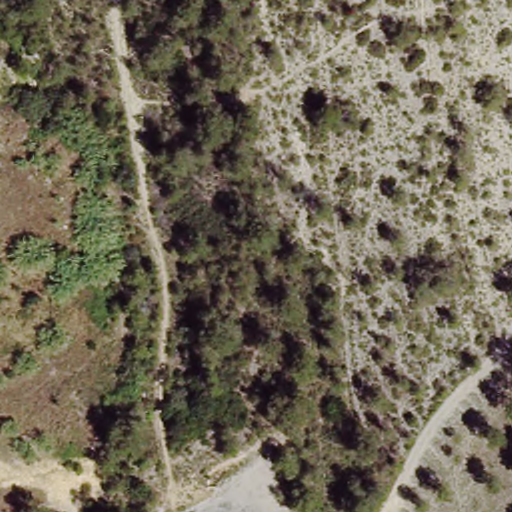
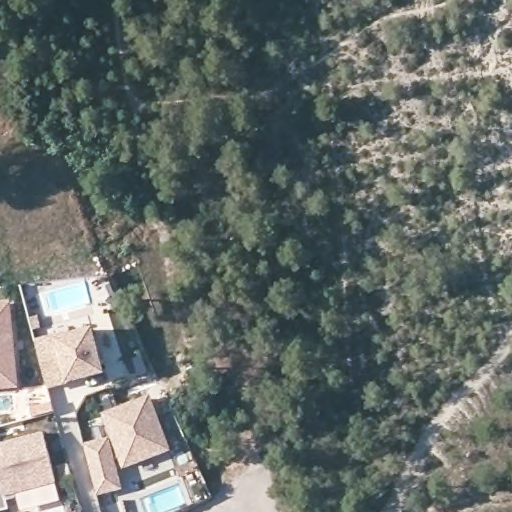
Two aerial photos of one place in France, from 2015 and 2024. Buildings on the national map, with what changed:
new [(0,390),(0,305),(11,304),(19,389),(0,390)]
new [(36,340),(57,335),(59,340),(94,330),(107,375),(68,386),(67,382),(50,391),(36,340)]
new [(86,445),(113,438),(104,415),(152,397),(172,453),(124,471),(118,456),(114,459),(123,490),(97,496),(86,445)]
new [(6,458),(2,442),(45,432),(59,484),(6,498),(9,508),(0,511),(0,460),(6,458)]

